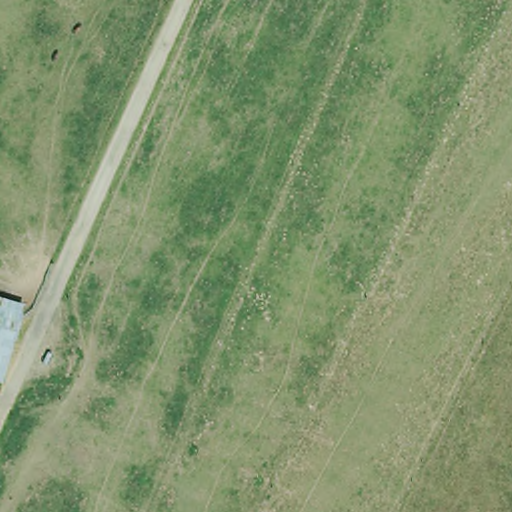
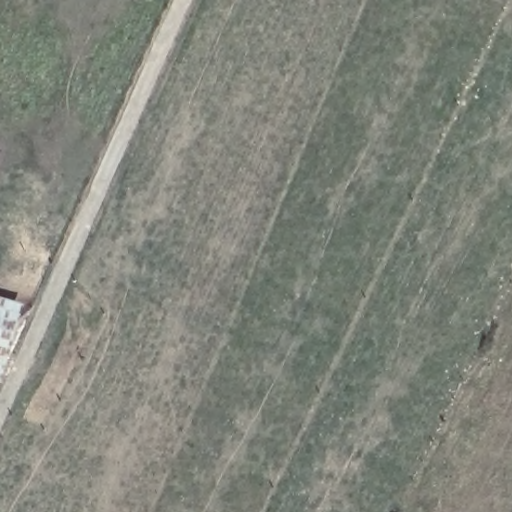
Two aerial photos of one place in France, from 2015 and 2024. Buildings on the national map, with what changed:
unchanged [(0,375),(0,295),(23,301),(0,375)]

